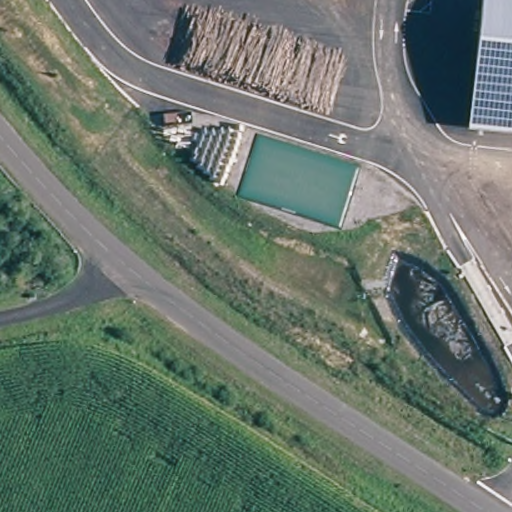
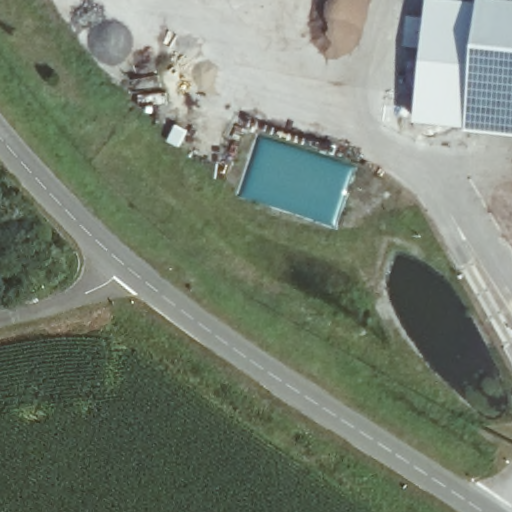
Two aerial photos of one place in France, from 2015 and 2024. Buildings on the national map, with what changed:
new [(467,127),(416,121),(429,0),(456,0),(482,4),(467,127)]
unchanged [(483,0),(512,0),(512,135),(467,130),(483,0)]

